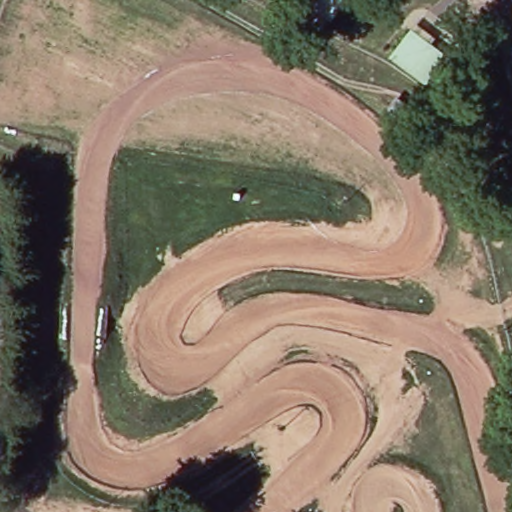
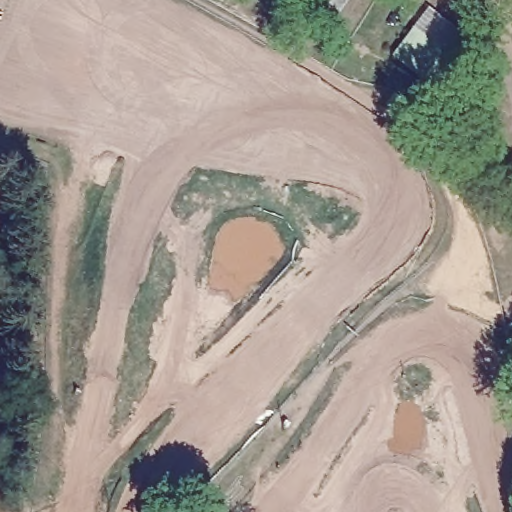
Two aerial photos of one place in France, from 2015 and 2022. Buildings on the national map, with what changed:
unchanged [(412,27),(452,56),(429,89),(390,60),(412,27)]

